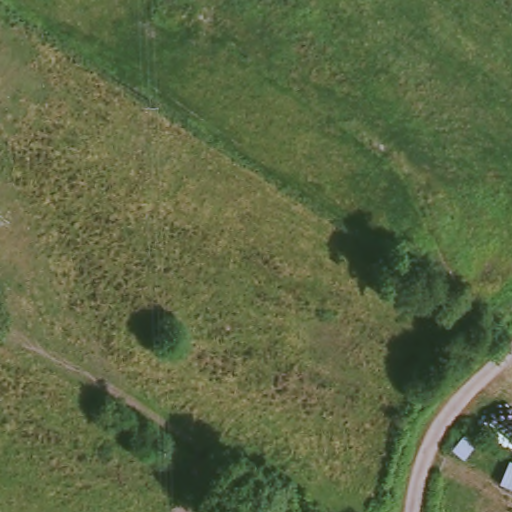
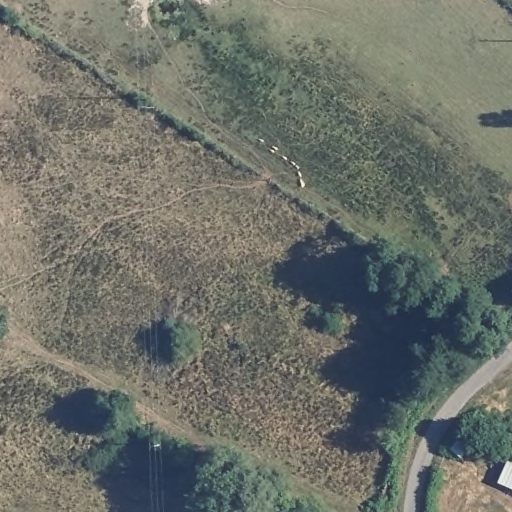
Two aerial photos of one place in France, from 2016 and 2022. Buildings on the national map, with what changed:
unchanged [(492,474),(501,454),(512,459),(512,484),(492,474)]

